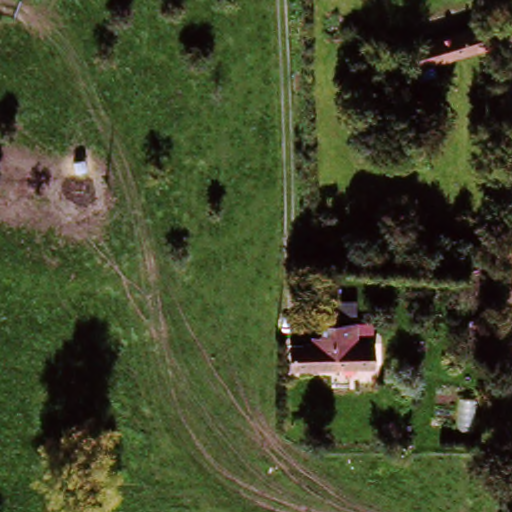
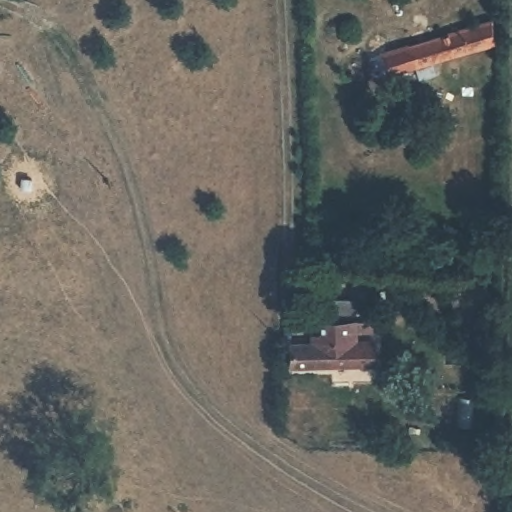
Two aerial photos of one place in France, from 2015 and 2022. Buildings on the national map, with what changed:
unchanged [(420,82),(416,69),(410,52),(490,24),(497,41),(498,42),(432,64),(436,76),(420,82)]
unchanged [(386,367),(314,372),(288,373),(287,351),(310,348),(309,327),(343,325),(345,346),(382,342),(386,367)]

